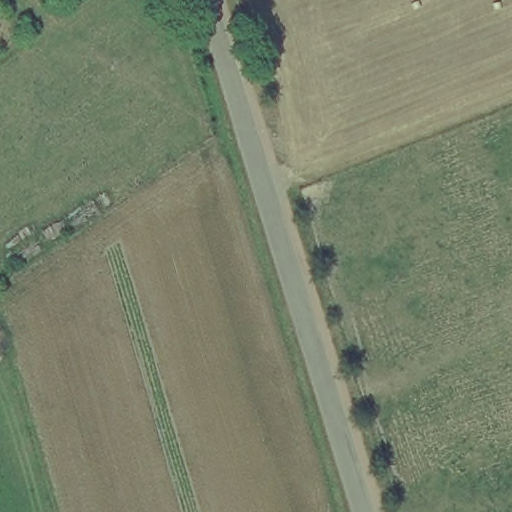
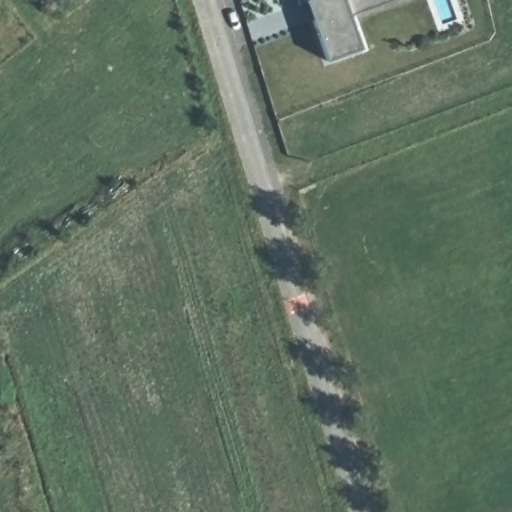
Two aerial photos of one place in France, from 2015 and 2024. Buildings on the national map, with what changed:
new [(299,0),(314,0),(301,5),(299,0)]
new [(364,48),(328,60),(314,20),(326,15),(320,0),(383,0),(351,11),(364,48)]

